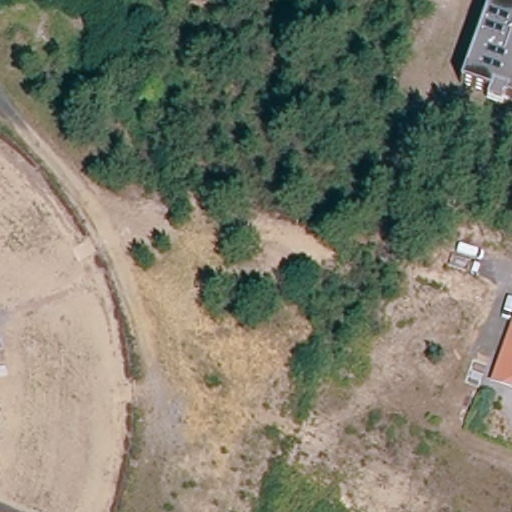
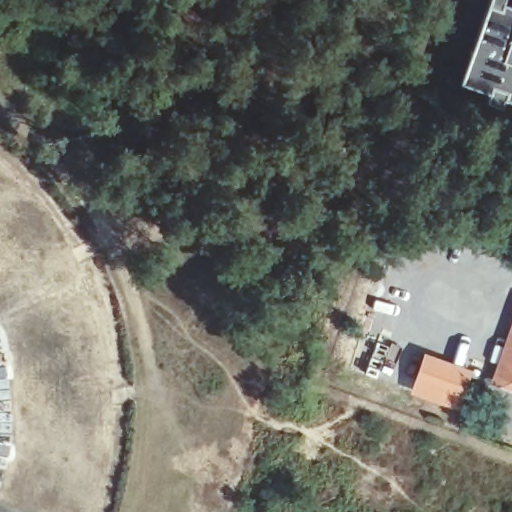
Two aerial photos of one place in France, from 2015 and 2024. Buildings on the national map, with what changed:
unchanged [(504,5),(512,8),(512,102),(505,100),(501,108),(487,102),(490,95),(461,84),(490,0),(506,0),(504,5)]
unchanged [(490,383),(512,327),(512,391),(490,383)]
new [(472,370),(457,410),(410,392),(425,352),(472,370)]

